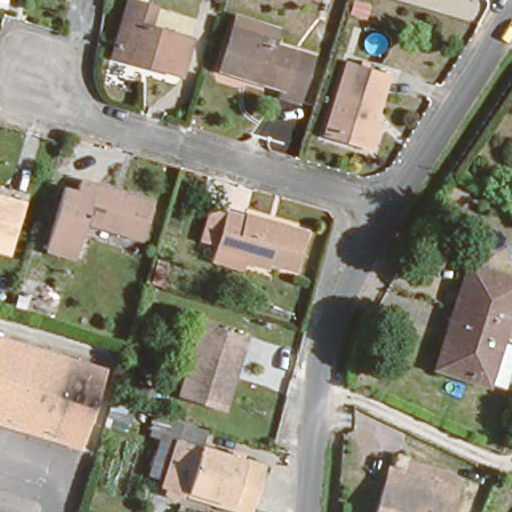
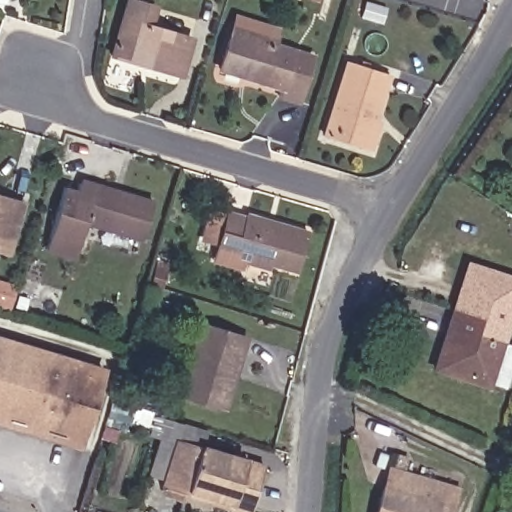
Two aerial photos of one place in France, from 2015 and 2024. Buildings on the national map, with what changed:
unchanged [(126,0),(142,0),(157,5),(151,24),(193,39),(180,76),(108,50),(126,0)]
unchanged [(335,0),(335,1),(332,0),(335,0)]
unchanged [(297,100),(276,94),(279,84),(216,62),(229,25),(238,28),(242,15),(264,22),(259,35),(314,54),(297,100)]
unchanged [(322,132),(346,60),(388,73),(373,115),(383,117),(372,149),(362,145),(322,132)]
unchanged [(141,241),(84,225),(73,257),(41,249),(63,187),(76,191),(77,186),(118,200),(119,197),(153,208),(141,241)]
unchanged [(11,230),(6,249),(0,247),(0,192),(21,198),(11,230)]
unchanged [(206,252),(210,238),(212,232),(197,229),(203,207),(218,211),(219,205),(237,210),(238,208),(307,228),(295,265),(265,256),(263,262),(239,254),(226,251),(224,257),(206,252)]
unchanged [(491,335),(471,328),(476,309),(450,303),(464,262),(512,280),(512,293),(498,336),(491,335)]
unchanged [(476,309),(471,328),(491,335),(498,336),(512,340),(512,348),(500,385),(483,380),(483,381),(429,364),(450,303),(476,309)]
unchanged [(175,396),(198,324),(236,336),(243,338),(231,375),(220,410),(175,396)]
unchanged [(0,342),(99,375),(76,443),(0,418),(0,342)]
unchanged [(163,482),(164,477),(144,471),(156,433),(164,410),(204,422),(197,442),(263,464),(248,510),(234,505),(186,490),(163,482)]
unchanged [(388,466),(457,490),(449,512),(372,512),(388,466)]

